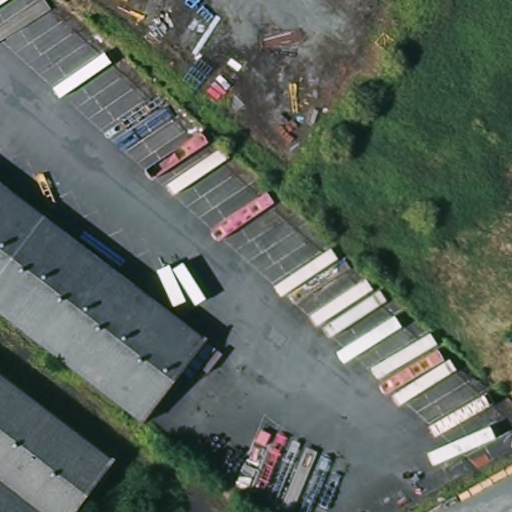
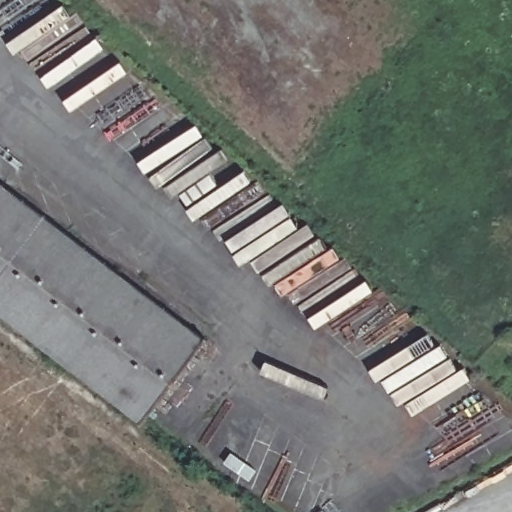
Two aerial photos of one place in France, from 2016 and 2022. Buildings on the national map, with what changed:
unchanged [(205,340),(141,422),(119,405),(0,314),(0,183),(205,340)]
demolished [(110,462),(71,512),(0,512),(0,377),(110,462)]

